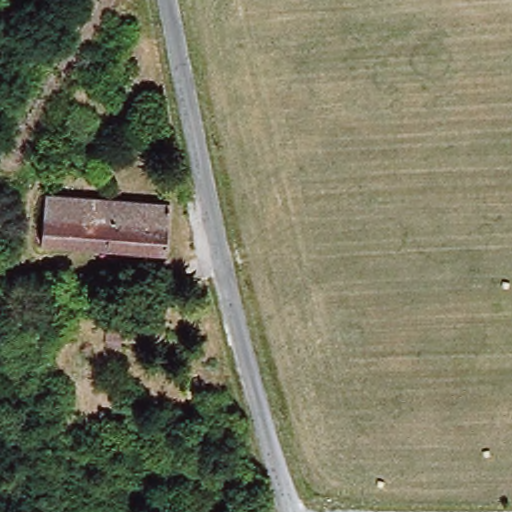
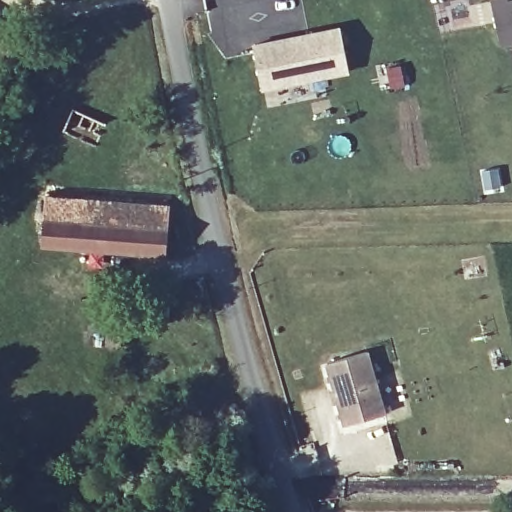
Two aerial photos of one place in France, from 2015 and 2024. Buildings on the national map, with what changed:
new [(506,0),(506,2),(512,1),(512,42),(498,45),(489,1),(491,0),(506,0)]
new [(341,30),(349,72),(261,89),(254,49),(341,30)]
unchanged [(111,117),(99,140),(70,124),(81,102),(111,117)]
unchanged [(40,199),(167,209),(164,258),(38,247),(40,199)]
demolished [(5,403),(0,393),(0,353),(26,337),(49,381),(5,403)]
new [(387,412),(343,427),(326,362),(368,350),(387,412)]

